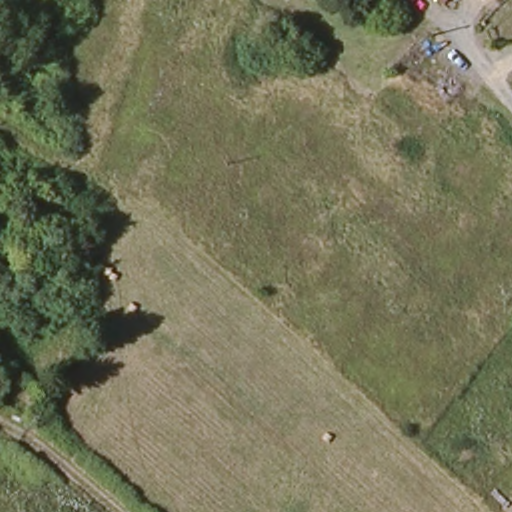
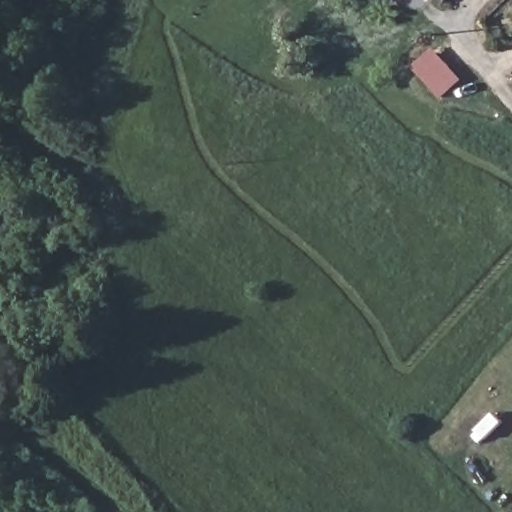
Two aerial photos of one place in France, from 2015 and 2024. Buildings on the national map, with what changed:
unchanged [(431,0),(449,0),(442,9),(431,0)]
new [(440,100),(411,67),(432,47),(462,79),(440,100)]

